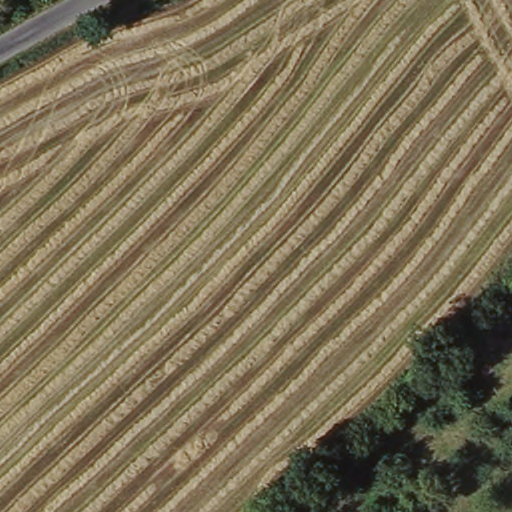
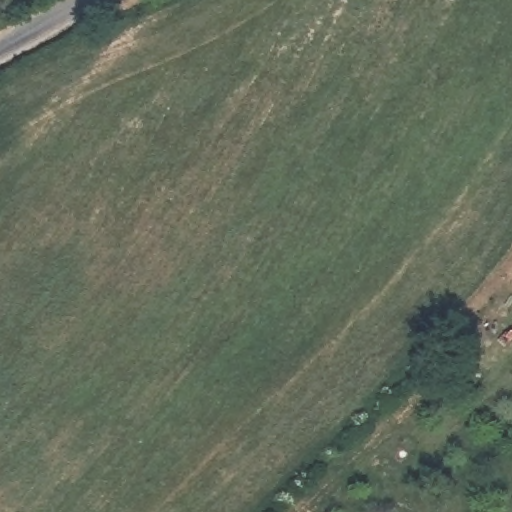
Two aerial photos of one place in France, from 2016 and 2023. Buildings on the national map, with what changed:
unchanged [(147,9),(142,0),(156,0),(147,9)]

